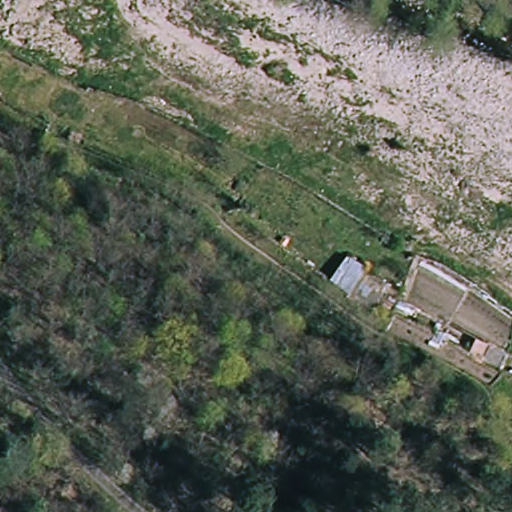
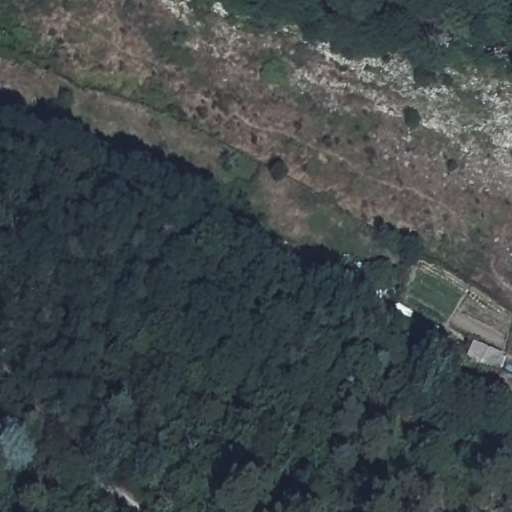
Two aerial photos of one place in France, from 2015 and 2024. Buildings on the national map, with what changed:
unchanged [(350,296),(331,286),(348,257),(367,268),(350,296)]

